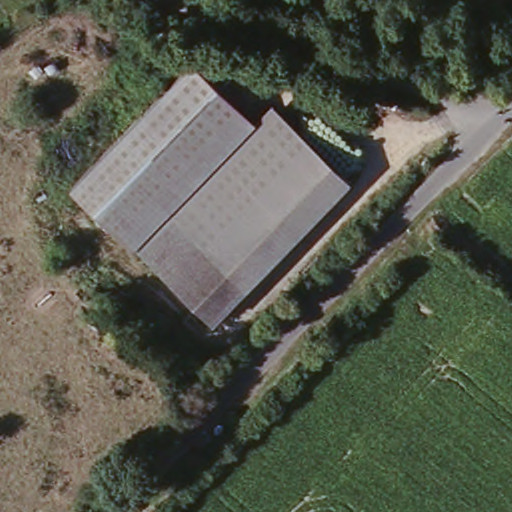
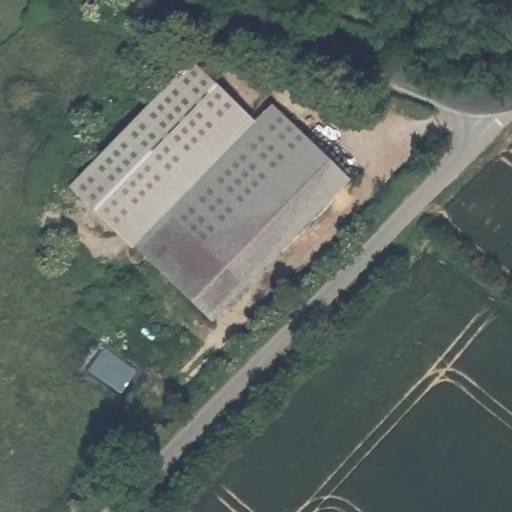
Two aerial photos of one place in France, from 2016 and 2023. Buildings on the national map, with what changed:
unchanged [(70,188),(190,62),(255,121),(132,248),(70,188)]
unchanged [(271,104),(351,180),(212,324),(132,248),(271,104)]

